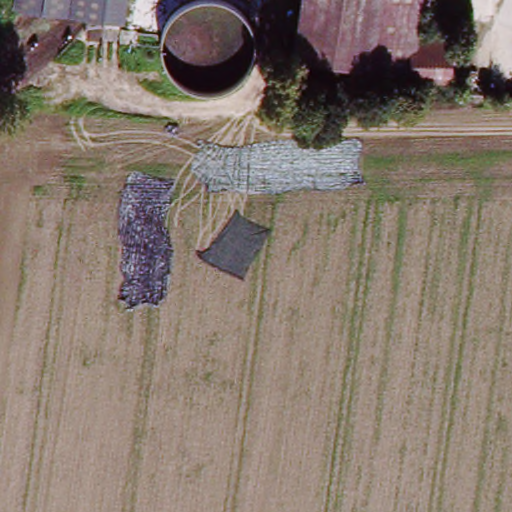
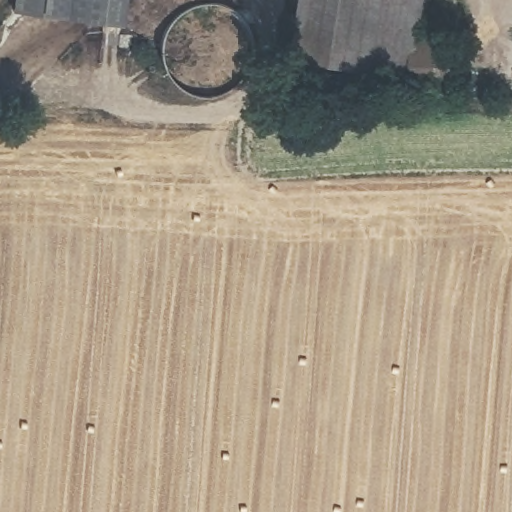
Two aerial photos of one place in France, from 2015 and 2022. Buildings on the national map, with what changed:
unchanged [(120,19),(18,8),(19,0),(122,0),(120,19)]
unchanged [(413,48),(409,48),(407,77),(289,56),(300,0),(421,0),(413,48)]
unchanged [(451,49),(449,87),(407,88),(407,77),(409,48),(413,48),(451,49)]

